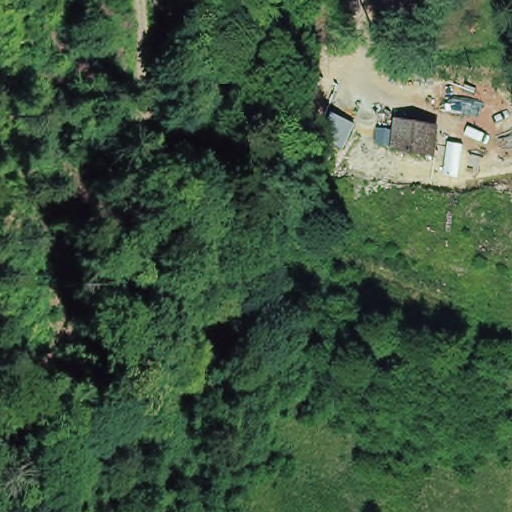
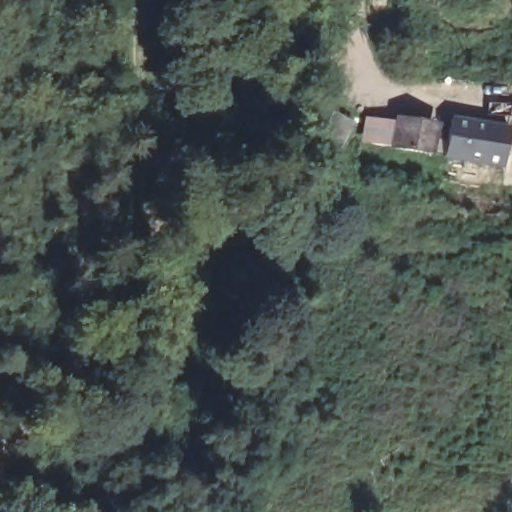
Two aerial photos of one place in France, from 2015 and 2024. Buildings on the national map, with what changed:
unchanged [(301,109),(318,85),(332,95),(313,117),(301,109)]
new [(502,170),(444,160),(451,118),(509,126),(502,170)]
unchanged [(427,150),(390,145),(392,123),(429,127),(427,150)]

